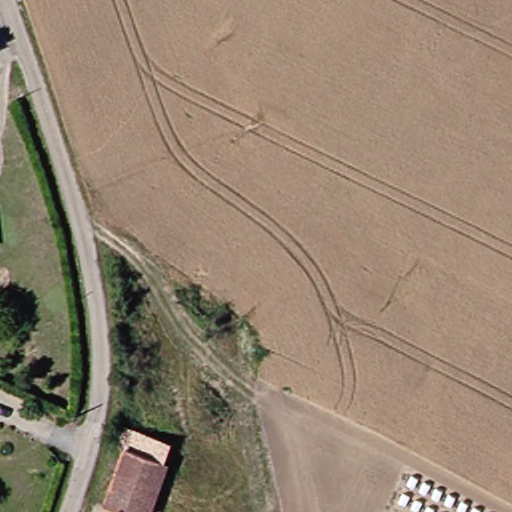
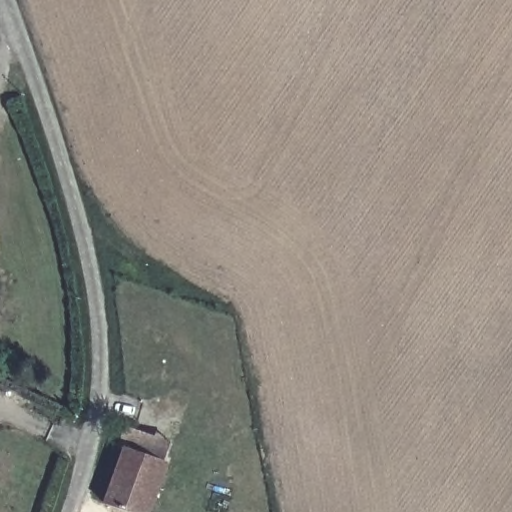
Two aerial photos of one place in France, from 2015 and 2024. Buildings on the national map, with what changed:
unchanged [(138,512),(116,512),(97,503),(120,445),(159,464),(138,512)]

